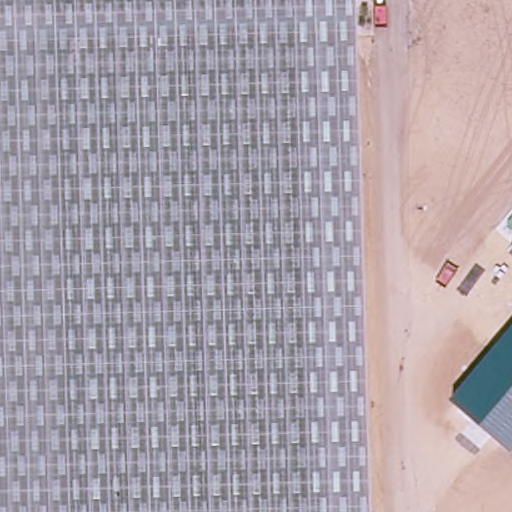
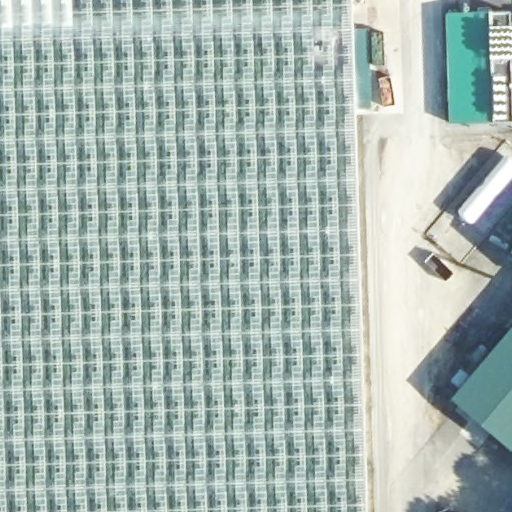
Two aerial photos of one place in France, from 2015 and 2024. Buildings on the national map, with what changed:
unchanged [(357,512),(0,512),(0,0),(333,0),(357,512)]
new [(446,11),(510,10),(512,119),(450,121),(446,11)]
new [(370,28),(372,109),(361,109),(361,101),(351,101),(350,28),(370,28)]
unchanged [(512,327),(512,450),(452,398),(512,327)]

